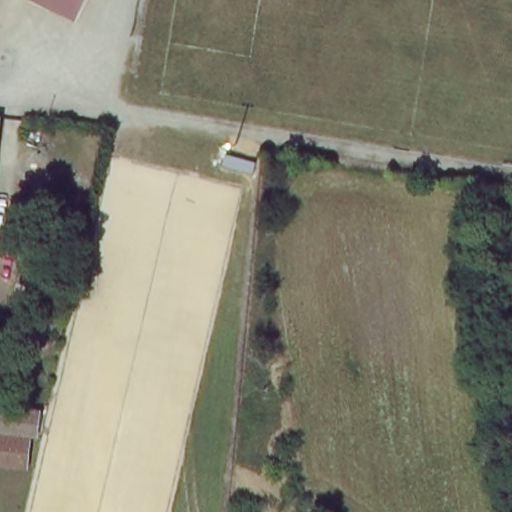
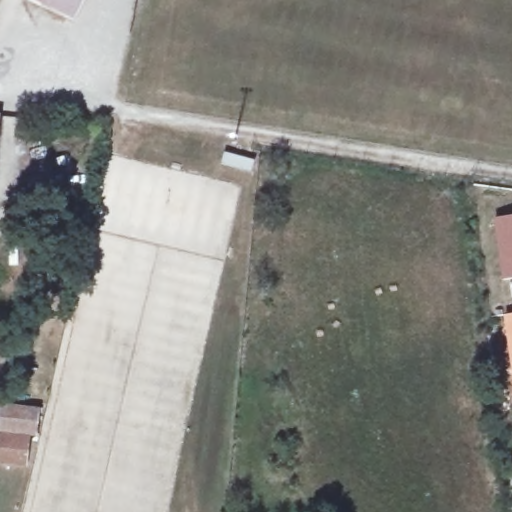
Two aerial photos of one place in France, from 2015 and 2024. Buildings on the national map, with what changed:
unchanged [(74,21),(30,0),(84,0),(74,21)]
new [(512,215),(512,277),(501,279),(492,218),(512,215)]
new [(512,313),(512,380),(503,315),(512,313)]
unchanged [(40,410),(36,428),(13,424),(16,407),(40,410)]
unchanged [(26,469),(0,464),(0,437),(30,443),(26,469)]

